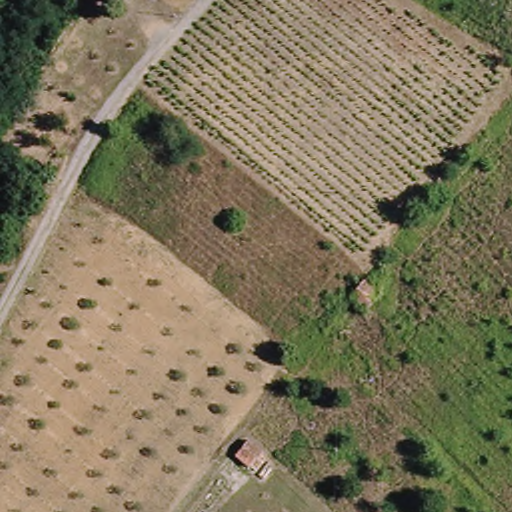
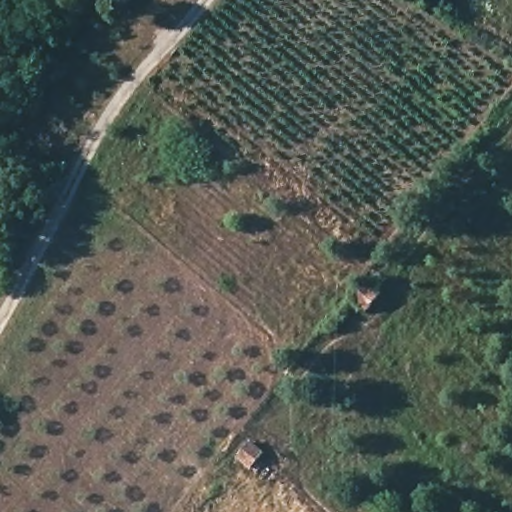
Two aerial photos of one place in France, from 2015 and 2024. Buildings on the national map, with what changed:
unchanged [(122,10),(109,0),(130,0),(122,10)]
unchanged [(387,297),(373,313),(355,297),(369,282),(387,297)]
unchanged [(252,475),(238,462),(251,442),(266,457),(252,475)]

